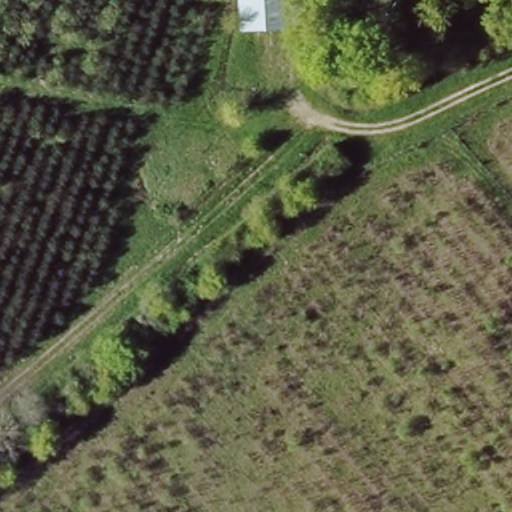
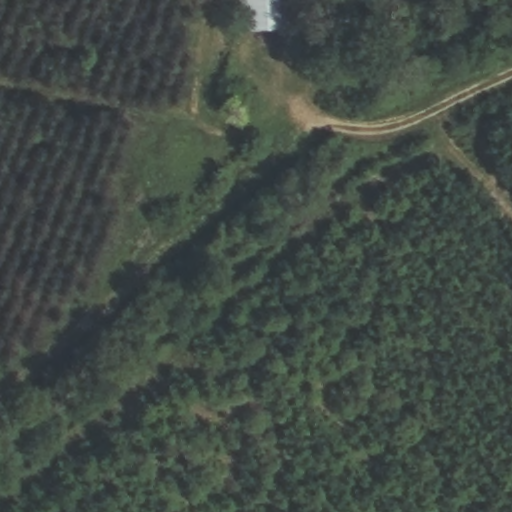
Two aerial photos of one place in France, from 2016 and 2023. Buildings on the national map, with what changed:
unchanged [(244,40),(242,0),(310,0),(312,36),(244,40)]

